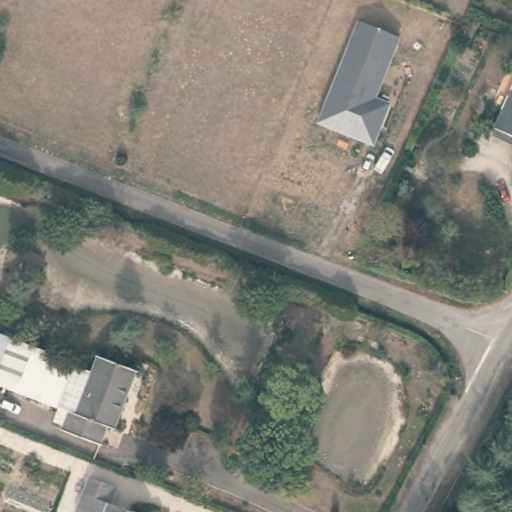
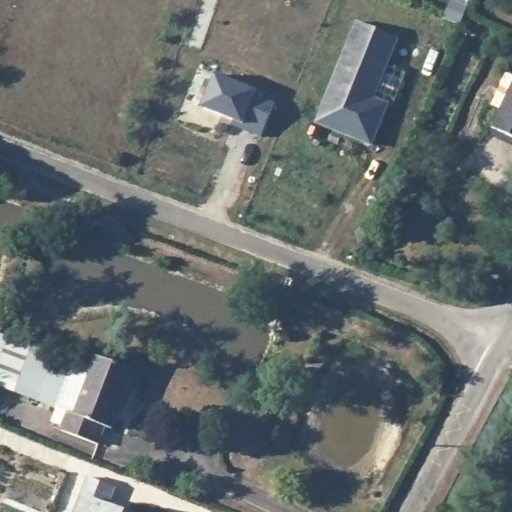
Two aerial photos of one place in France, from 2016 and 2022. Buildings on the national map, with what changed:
unchanged [(400,37),(376,100),(391,105),(375,146),(318,121),(356,21),(400,37)]
new [(216,75),(259,90),(256,96),(275,102),(260,136),(232,125),(234,120),(203,109),(216,75)]
unchanged [(512,92),(512,132),(496,125),(512,92)]
unchanged [(74,365),(54,410),(0,387),(0,336),(74,365)]
unchanged [(62,430),(70,410),(77,413),(100,357),(138,374),(115,428),(109,428),(101,446),(62,430)]
unchanged [(87,478),(111,487),(106,505),(125,512),(75,512),(87,478)]

